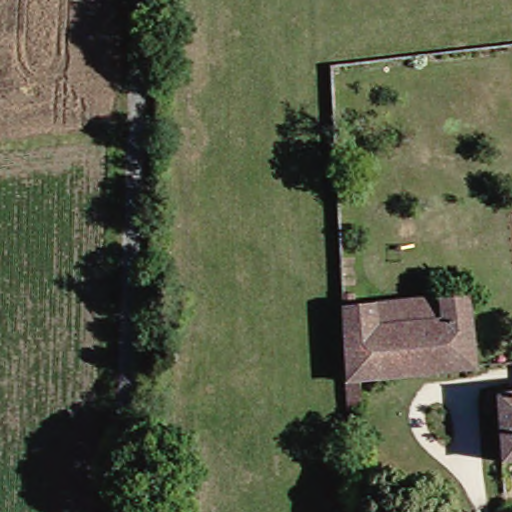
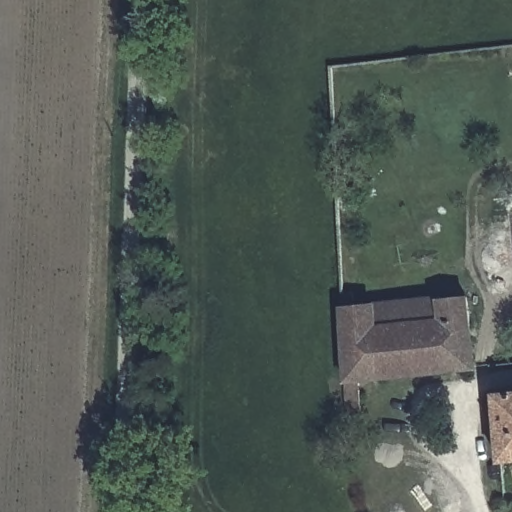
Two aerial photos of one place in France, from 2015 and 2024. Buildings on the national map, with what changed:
unchanged [(350,295),(360,295),(361,305),(475,296),(482,367),(368,378),(368,412),(355,412),(350,295)]
unchanged [(512,392),(512,431),(509,392),(512,392)]

